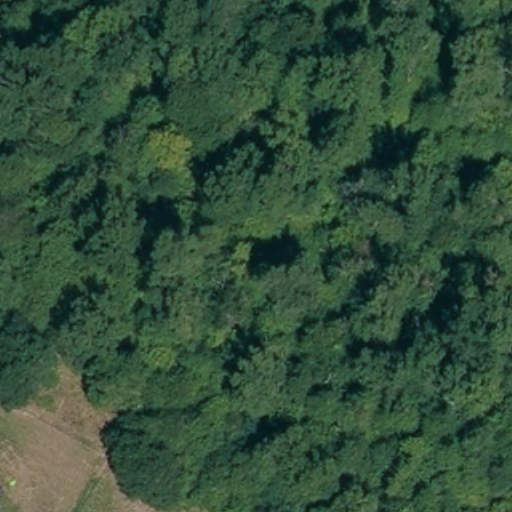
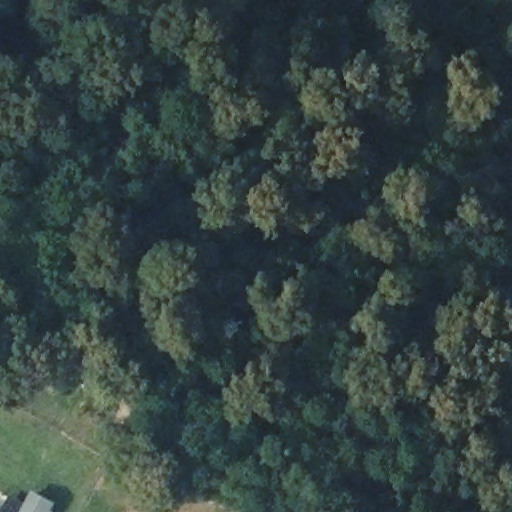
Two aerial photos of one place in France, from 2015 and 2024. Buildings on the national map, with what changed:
new [(51,512),(19,512),(30,492),(55,504),(51,512)]

